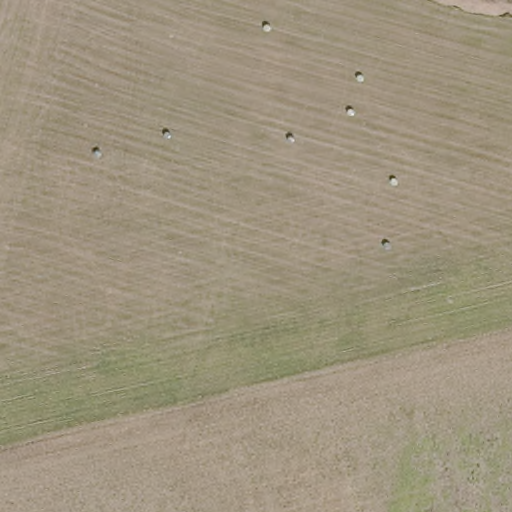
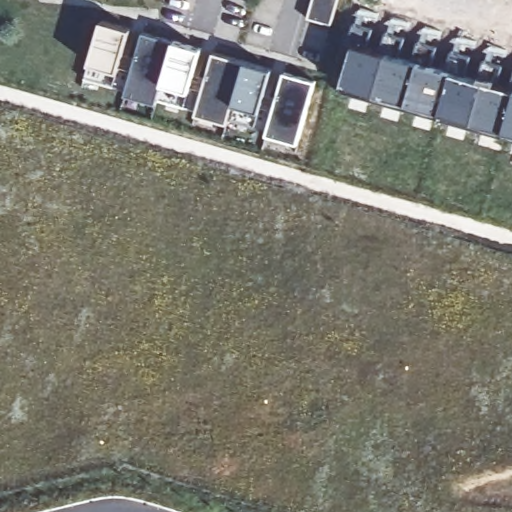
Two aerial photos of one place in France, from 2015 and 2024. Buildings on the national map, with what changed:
new [(330,25),(307,18),(312,0),(337,0),(330,25)]
new [(367,46),(380,50),(385,30),(404,35),(397,56),(412,60),(418,40),(437,45),(429,67),(445,71),(452,48),(470,54),(463,75),(476,79),(483,58),(502,63),(495,84),(510,88),(512,82),(512,135),(341,86),(343,78),(335,79),(353,20),(372,27),(367,46)]
new [(155,103),(124,94),(125,90),(85,78),(102,22),(130,30),(120,66),(132,69),(143,33),(200,49),(190,85),(203,89),(215,53),(272,69),(262,106),(274,109),(284,72),(315,81),(297,143),(267,135),(267,131),(228,120),(227,123),(197,115),(198,111),(156,99),(155,103)]

